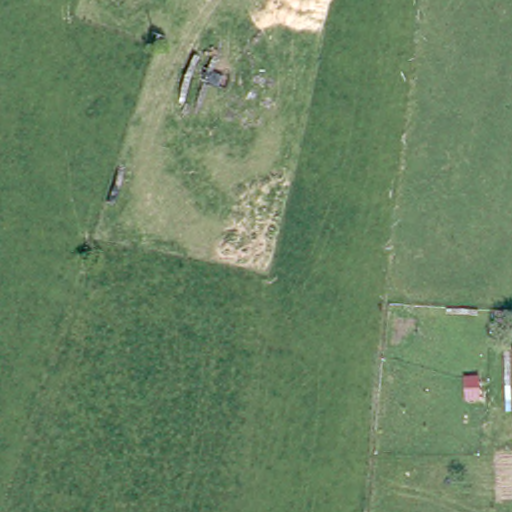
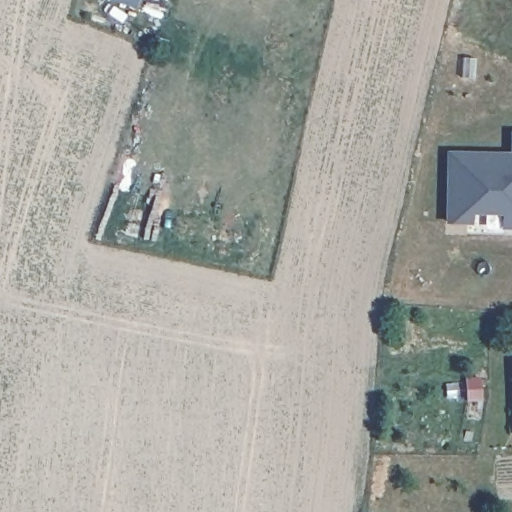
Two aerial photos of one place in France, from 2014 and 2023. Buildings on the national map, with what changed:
new [(110,0),(140,0),(137,9),(110,0)]
new [(472,214),(472,225),(446,224),(446,151),(510,152),(510,131),(512,131),(512,229),(500,229),(500,214),(472,214)]

